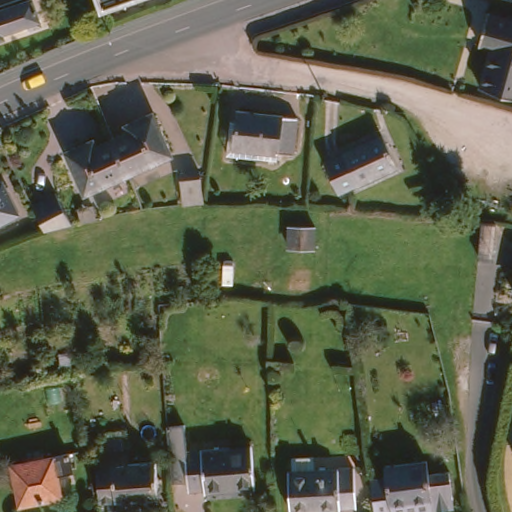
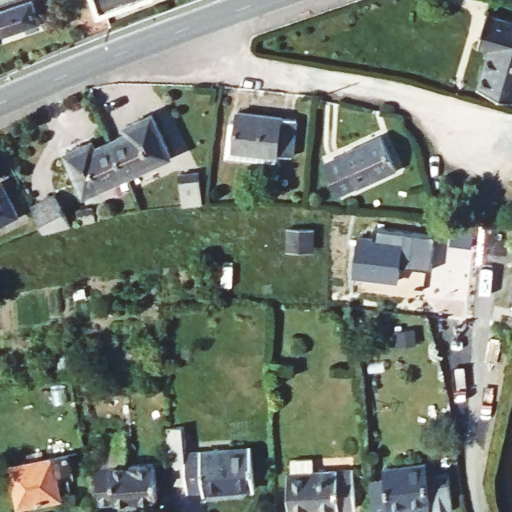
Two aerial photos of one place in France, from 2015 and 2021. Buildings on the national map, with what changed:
unchanged [(32,0),(39,21),(3,33),(5,39),(0,40),(0,12),(32,0)]
unchanged [(105,10),(101,0),(132,0),(105,10)]
unchanged [(480,76),(487,53),(476,50),(485,20),(512,27),(512,102),(476,91),(480,76)]
unchanged [(290,159),(231,151),(236,115),(295,122),(290,159)]
unchanged [(127,139),(123,132),(150,120),(170,160),(127,181),(111,146),(127,139)]
unchanged [(396,169),(358,188),(357,186),(339,196),(325,168),(343,159),(342,157),(379,138),(396,169)]
unchanged [(85,201),(65,160),(90,148),(94,155),(111,146),(127,181),(85,201)]
unchanged [(183,209),(180,177),(199,176),(201,207),(183,209)]
unchanged [(0,222),(0,183),(1,183),(16,215),(0,222)]
unchanged [(42,234),(29,208),(54,196),(70,227),(42,234)]
new [(285,228),(315,229),(314,249),(285,248),(285,228)]
new [(375,230),(435,237),(431,270),(400,265),(398,283),(352,276),(358,235),(374,237),(375,230)]
unchanged [(512,259),(512,274),(509,273),(512,259)]
unchanged [(512,279),(512,294),(509,293),(512,279)]
unchanged [(264,447),(269,489),(217,494),(216,490),(201,491),(200,480),(185,481),(180,426),(196,425),(200,453),(264,447)]
unchanged [(69,472),(55,475),(59,496),(17,505),(9,466),(65,455),(69,472)]
unchanged [(443,468),(448,504),(427,506),(386,512),(369,512),(364,476),(381,473),(380,465),(420,459),(421,471),(443,468)]
unchanged [(153,500),(95,503),(92,469),(150,465),(153,500)]
unchanged [(293,480),(292,466),(315,465),(315,478),(356,476),(358,512),(291,512),(290,480),(293,480)]

